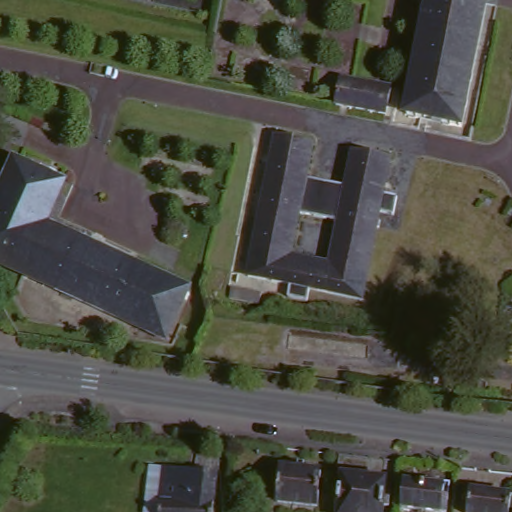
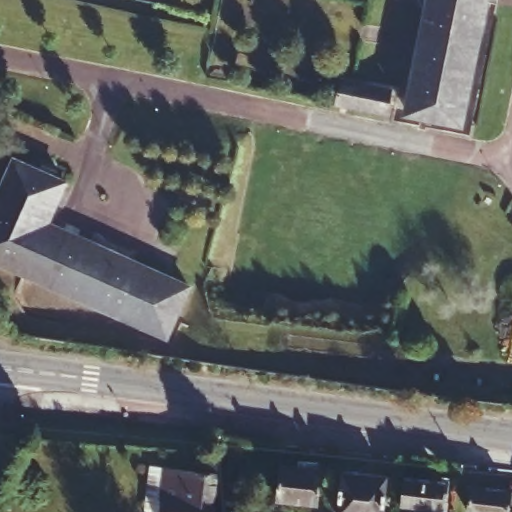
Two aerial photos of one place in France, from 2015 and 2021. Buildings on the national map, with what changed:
unchanged [(461,125),(407,114),(430,0),(487,0),(461,125)]
unchanged [(336,104),(343,78),(391,89),(386,115),(336,104)]
demolished [(351,186),(359,151),(396,158),(388,193),(403,196),(399,215),(384,212),(367,298),(315,288),(313,299),(293,296),(295,284),(253,275),(282,136),(318,143),(311,178),(351,186)]
unchanged [(47,224),(189,288),(166,338),(0,263),(0,192),(14,159),(65,182),(47,224)]
demolished [(261,292),(259,302),(229,295),(232,285),(261,292)]
unchanged [(189,471),(191,456),(214,459),(209,502),(185,501),(185,502),(168,501),(172,469),(189,471)]
unchanged [(208,504),(208,512),(139,512),(146,466),(153,467),(172,469),(168,501),(185,502),(208,504)]
unchanged [(321,471),(316,506),(277,501),(281,466),(321,471)]
unchanged [(387,478),(383,512),(338,512),(342,473),(387,478)]
unchanged [(444,484),(441,511),(401,506),(404,479),(444,484)]
unchanged [(512,512),(500,512),(472,508),(476,483),(512,488),(512,512)]

